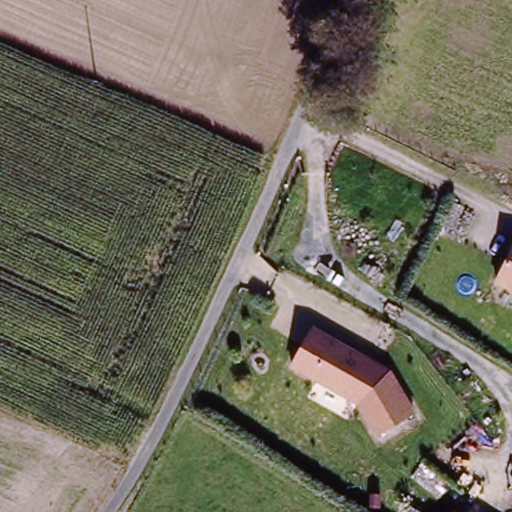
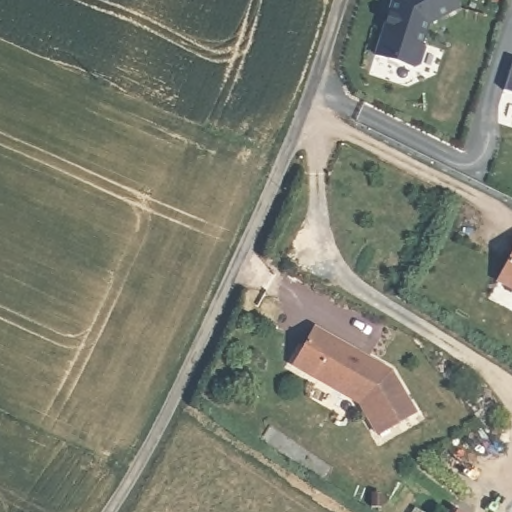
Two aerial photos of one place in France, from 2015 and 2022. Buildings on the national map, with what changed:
new [(429,24),(422,45),(426,51),(420,66),(412,68),(373,56),(392,0),(455,0),(461,10),(429,24)]
new [(503,92),(512,65),(512,94),(503,92)]
unchanged [(512,249),(512,288),(497,281),(512,249)]
unchanged [(391,371),(415,412),(378,434),(359,403),(294,363),(316,327),(391,371)]
new [(458,512),(454,512),(456,510),(458,512)]

